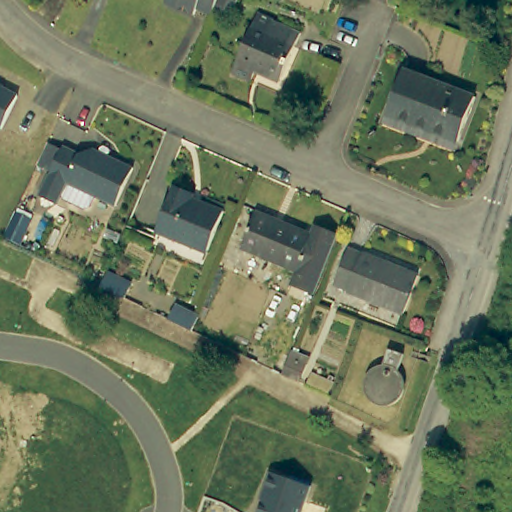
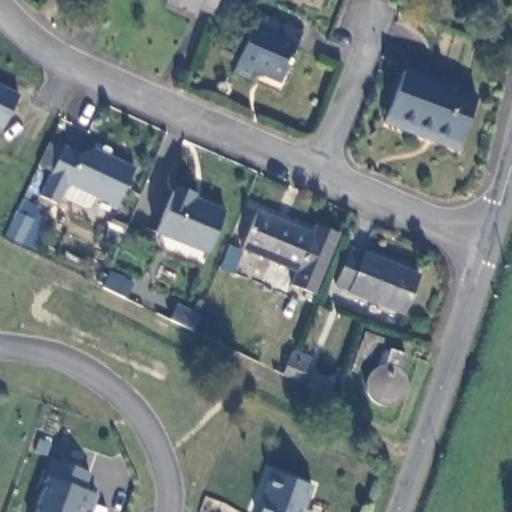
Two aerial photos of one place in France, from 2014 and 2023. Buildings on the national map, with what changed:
unchanged [(203,12),(182,4),(183,0),(223,0),(220,10),(206,5),(203,12)]
unchanged [(261,69),(257,78),(239,70),(256,24),(272,30),(276,16),(307,27),(288,73),(286,79),(261,69)]
unchanged [(387,120),(390,113),(407,66),(480,93),(462,140),(460,148),(387,120)]
unchanged [(19,96),(2,130),(0,129),(0,86),(19,96)]
unchanged [(62,151),(64,146),(79,154),(95,149),(134,168),(117,208),(96,198),(91,209),(87,210),(63,198),(58,206),(40,197),(51,173),(39,167),(49,144),(62,151)]
unchanged [(204,197),(201,202),(232,216),(213,258),(162,236),(182,188),(204,197)]
unchanged [(306,268),(251,243),(267,206),(323,232),(327,222),(349,231),(321,292),(300,283),(306,268)]
unchanged [(19,210),(34,217),(21,246),(4,239),(19,210)]
unchanged [(349,248),(362,253),(363,251),(421,275),(405,312),(335,283),(349,248)]
unchanged [(101,290),(101,289),(106,277),(132,289),(126,303),(101,290)]
unchanged [(201,321),(194,335),(171,324),(177,310),(201,321)]
unchanged [(293,364),(296,358),(313,367),(312,372),(303,388),(286,380),(293,364)]
unchanged [(341,387),(335,403),(313,393),(320,378),(341,387)]
new [(90,474),(84,490),(87,491),(98,495),(92,512),(82,509),(81,512),(35,512),(54,461),(90,474)]
unchanged [(311,488),(303,512),(258,512),(272,474),(311,488)]

